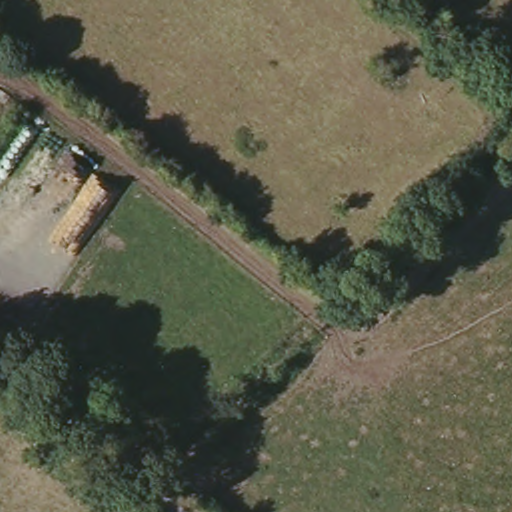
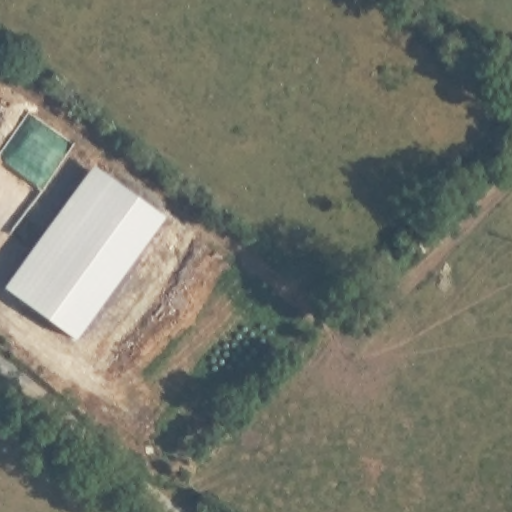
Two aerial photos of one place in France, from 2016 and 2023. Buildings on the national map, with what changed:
new [(92,165),(164,218),(75,340),(3,288),(92,165)]

